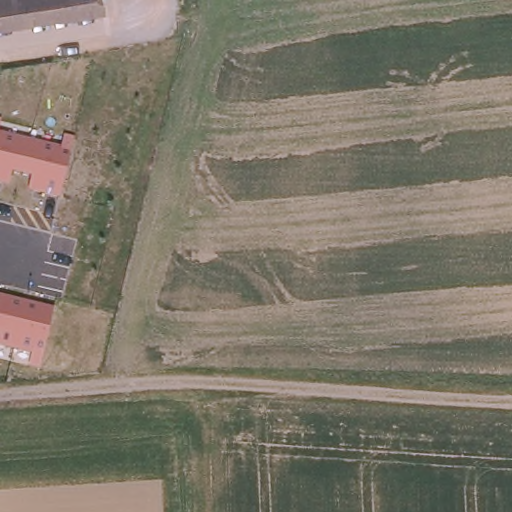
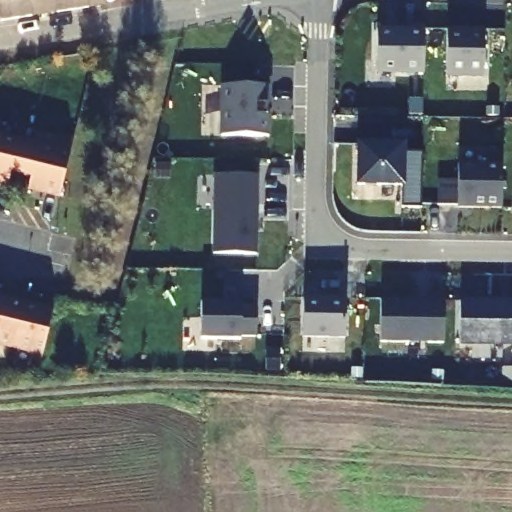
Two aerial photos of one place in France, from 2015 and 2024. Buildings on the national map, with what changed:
unchanged [(10,24),(0,25),(0,0),(13,0),(16,22),(10,24)]
unchanged [(16,22),(13,0),(42,0),(45,19),(16,22)]
unchanged [(45,19),(42,0),(71,0),(72,14),(45,19)]
unchanged [(72,14),(71,0),(98,0),(100,10),(72,14)]
new [(377,30),(396,30),(398,32),(407,32),(407,27),(424,28),(423,72),(376,72),(377,30)]
new [(447,29),(484,30),(483,76),(446,75),(447,29)]
new [(222,85),(268,86),(268,103),(266,104),(266,116),(268,115),(267,136),(222,135),(222,85)]
unchanged [(0,184),(0,134),(72,152),(60,199),(0,184)]
new [(357,145),(403,145),(403,152),(422,152),(420,206),(402,206),(402,187),(357,186),(357,145)]
new [(458,164),(502,165),(501,208),(458,207),(458,164)]
new [(260,175),(257,255),(213,252),(215,175),(260,175)]
unchanged [(0,348),(0,295),(53,308),(38,357),(0,348)]
new [(304,297),(346,297),(345,337),(303,337),(304,297)]
new [(462,297),(512,298),(512,343),(460,342),(462,297)]
new [(381,298),(445,299),(444,342),(380,341),(381,298)]
new [(258,303),(257,337),(239,340),(202,337),(202,302),(258,303)]

